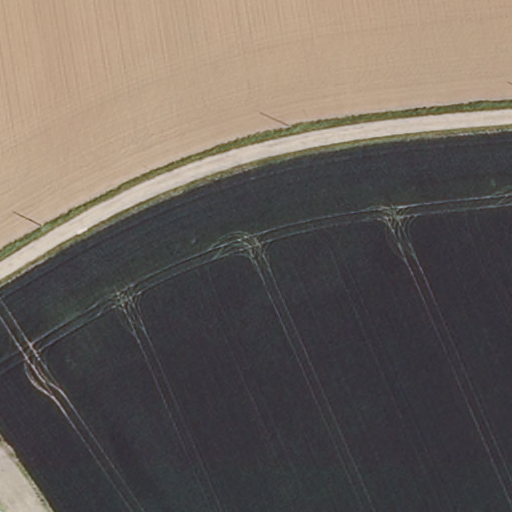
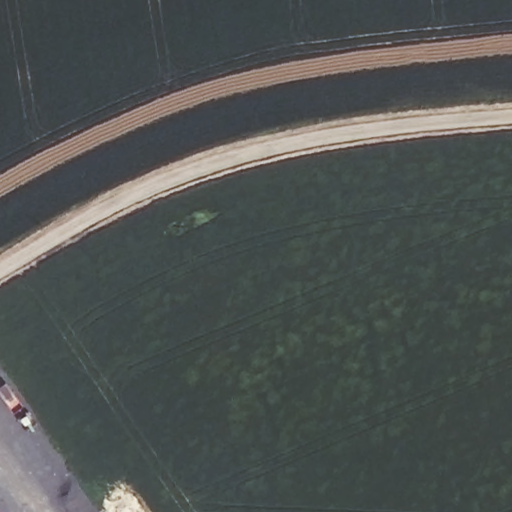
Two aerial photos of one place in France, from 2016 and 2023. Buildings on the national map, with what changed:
unchanged [(0,507),(5,512),(0,512),(0,507)]

